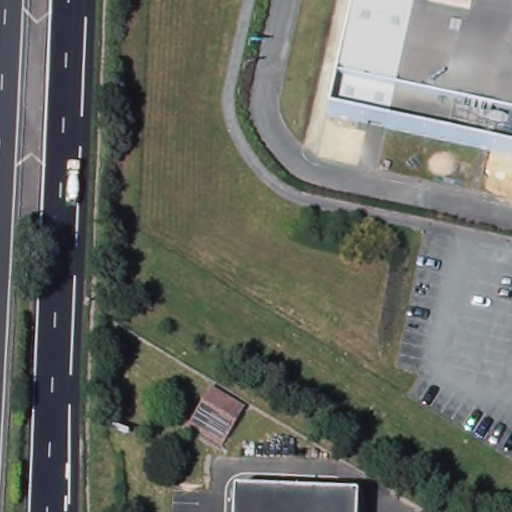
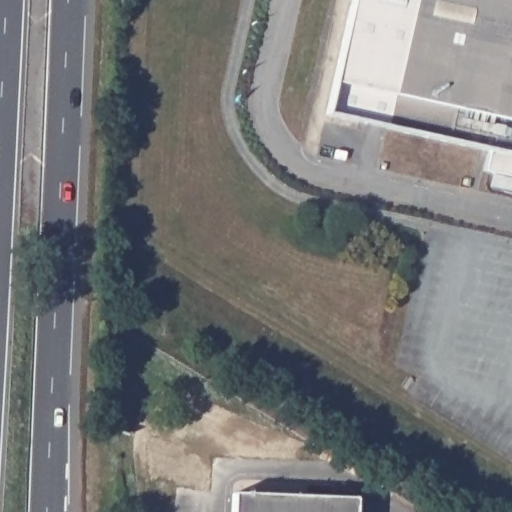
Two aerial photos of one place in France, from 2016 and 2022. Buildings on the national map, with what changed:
unchanged [(326,115),(352,0),(411,0),(382,130),(326,115)]
unchanged [(411,0),(512,0),(512,159),(382,130),(411,0)]
unchanged [(236,494),(360,499),(359,512),(235,512),(236,494)]

